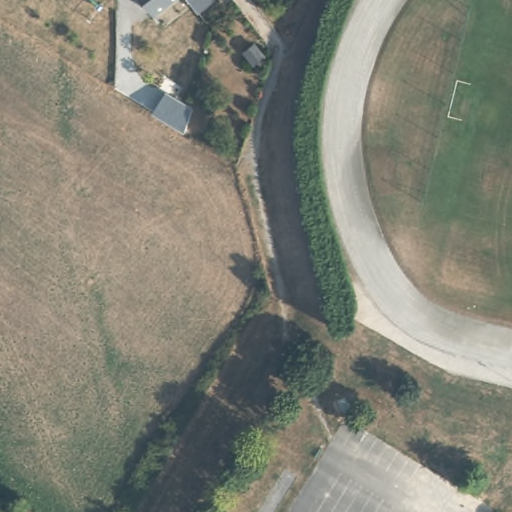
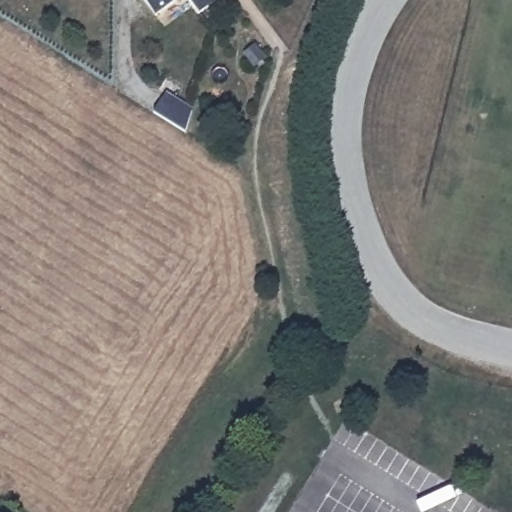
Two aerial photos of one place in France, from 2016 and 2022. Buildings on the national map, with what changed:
unchanged [(150,14),(139,0),(166,0),(150,14)]
unchanged [(192,11),(184,0),(205,0),(192,11)]

